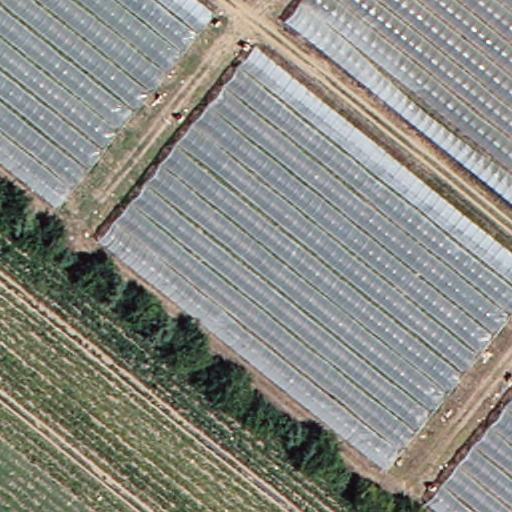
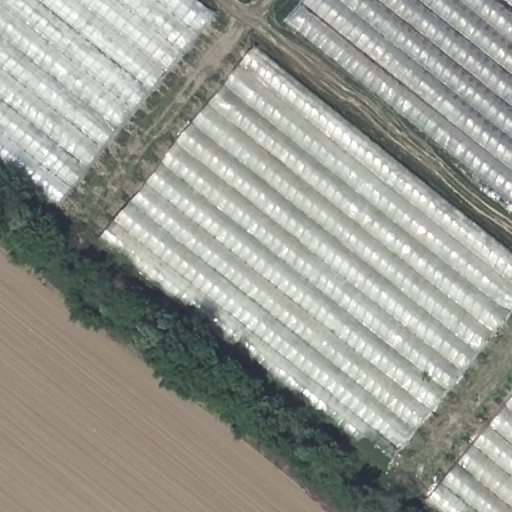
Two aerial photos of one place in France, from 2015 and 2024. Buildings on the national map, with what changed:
unchanged [(0,156),(0,0),(211,0),(214,2),(56,202),(0,156)]
unchanged [(285,13),(296,0),(512,0),(512,193),(285,13)]
unchanged [(100,235),(257,38),(512,241),(512,305),(384,463),(100,235)]
unchanged [(441,512),(424,498),(512,388),(512,512),(441,512)]

